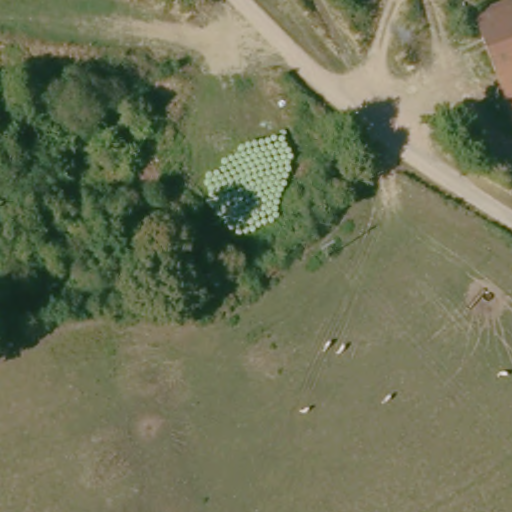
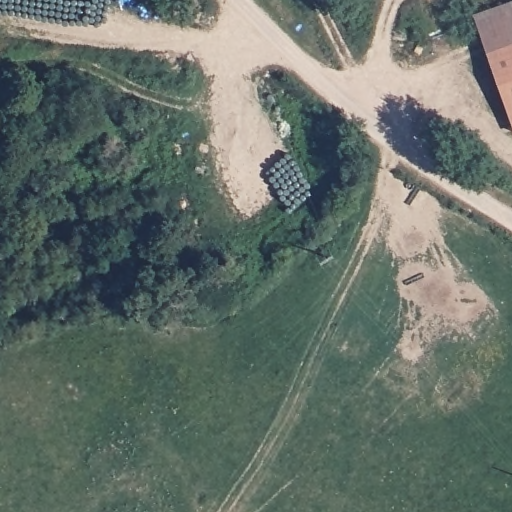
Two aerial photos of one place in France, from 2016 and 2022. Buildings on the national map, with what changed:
unchanged [(509,0),(512,0),(512,41),(490,49),(477,11),(509,0)]
unchanged [(490,49),(512,41),(512,110),(490,49)]

